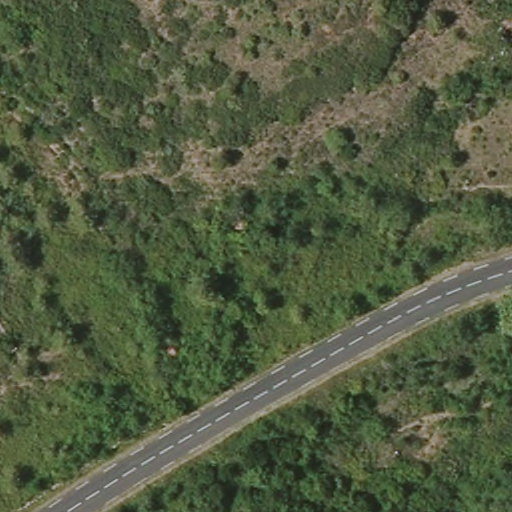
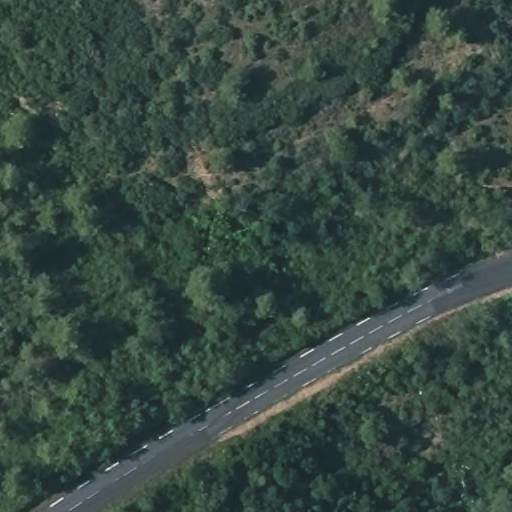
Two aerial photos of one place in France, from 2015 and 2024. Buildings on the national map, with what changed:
unchanged [(505,31),(502,22),(512,18),(512,41),(507,42),(505,31)]

